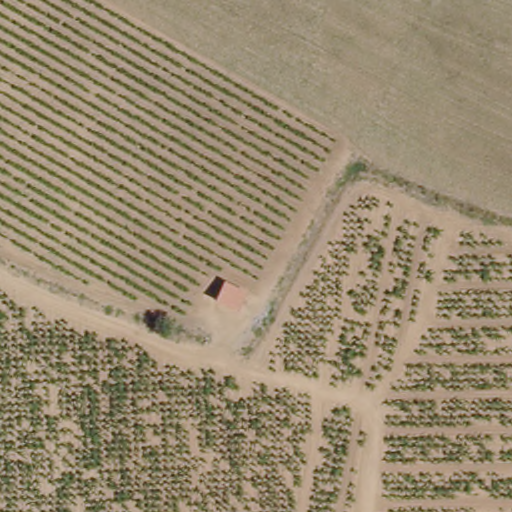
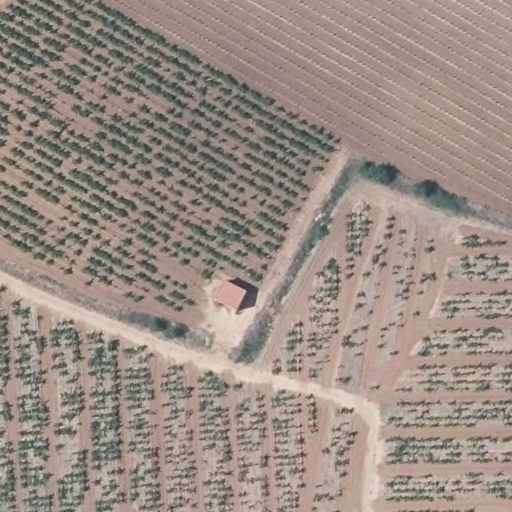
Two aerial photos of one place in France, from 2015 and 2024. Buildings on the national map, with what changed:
unchanged [(241,292),(233,308),(213,299),(223,283),(241,292)]

